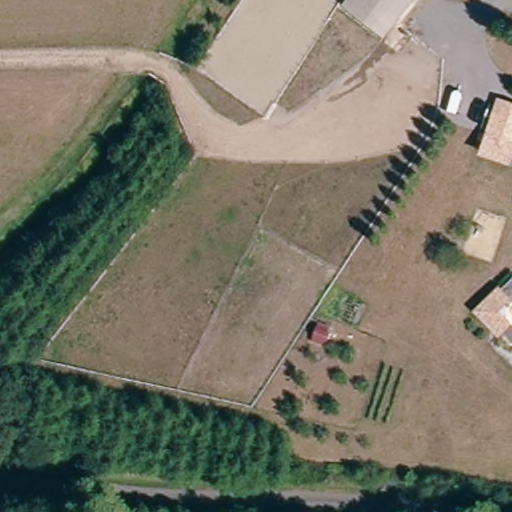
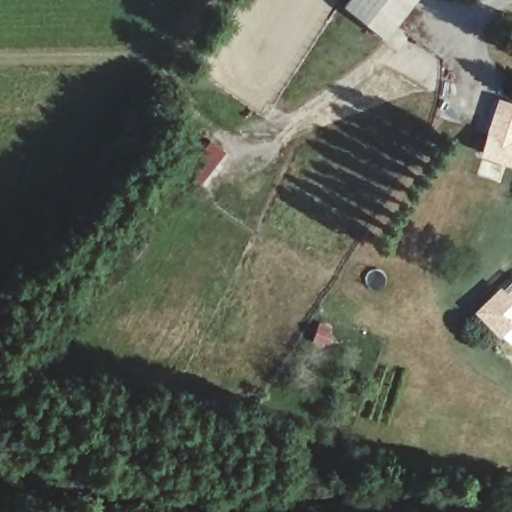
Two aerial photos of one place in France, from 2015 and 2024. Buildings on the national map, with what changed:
unchanged [(359,0),(421,0),(395,39),(352,10),(359,0)]
unchanged [(488,114),(490,101),(512,105),(512,140),(509,159),(481,155),(488,114)]
unchanged [(490,300),(502,306),(493,321),(512,331),(512,348),(474,327),(490,300)]

